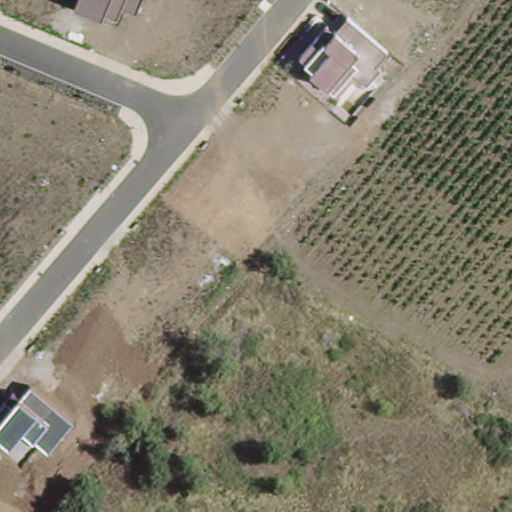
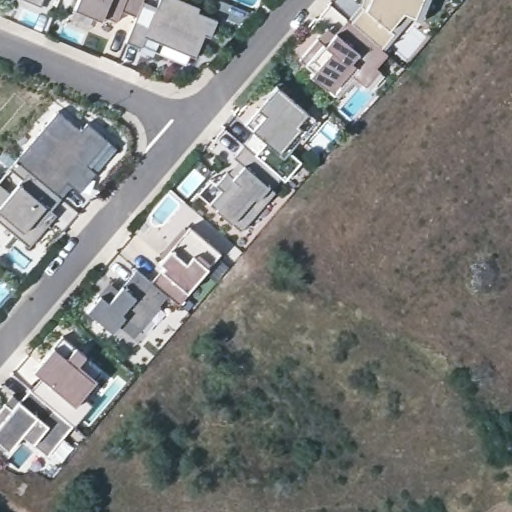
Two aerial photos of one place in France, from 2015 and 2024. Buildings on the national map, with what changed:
new [(40,4),(31,0),(42,0),(40,4)]
unchanged [(78,0),(141,0),(136,14),(120,9),(115,21),(103,16),(102,20),(75,8),(78,0)]
new [(198,11),(219,20),(213,40),(204,36),(195,57),(190,55),(187,65),(127,42),(136,14),(141,0),(148,0),(157,3),(158,0),(189,0),(200,4),(198,11)]
new [(422,19),(414,16),(388,52),(347,20),(360,6),(362,0),(430,0),(422,19)]
unchanged [(328,88),(309,74),(312,70),(312,71),(304,64),(298,59),(326,26),(335,34),(347,20),(388,52),(375,69),(379,71),(365,88),(353,79),(338,99),(328,88)]
new [(227,173),(228,174),(238,162),(233,157),(244,145),(241,143),(252,130),(244,123),(276,86),(314,119),(287,150),(300,162),(284,180),(281,178),(271,189),(275,192),(241,232),(210,205),(222,191),(215,185),(227,173)]
new [(57,108),(82,129),(88,122),(110,140),(86,169),(93,175),(79,193),(68,184),(58,196),(14,159),(57,108)]
new [(14,159),(58,196),(60,198),(52,208),(52,219),(28,247),(0,224),(0,176),(14,159)]
new [(182,225),(217,255),(184,294),(186,295),(177,305),(163,293),(152,282),(160,271),(150,262),(182,225)]
unchanged [(115,323),(108,331),(84,311),(97,295),(103,300),(132,266),(152,282),(163,293),(154,304),(158,307),(138,330),(132,337),(115,323)]
new [(39,363),(62,335),(78,348),(107,373),(85,398),(67,420),(31,390),(48,370),(39,363)]
new [(48,370),(42,378),(33,370),(39,363),(48,370)]
unchanged [(10,395),(20,403),(30,390),(67,420),(74,425),(50,458),(33,445),(21,435),(8,449),(0,443),(0,409),(10,395)]

